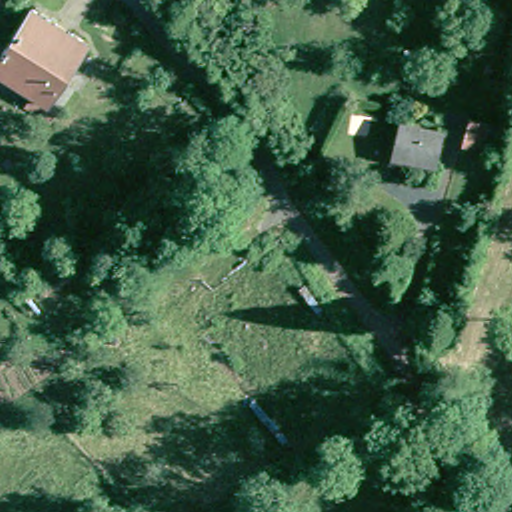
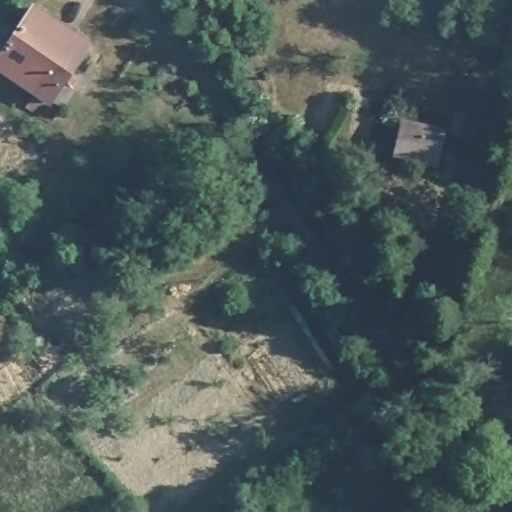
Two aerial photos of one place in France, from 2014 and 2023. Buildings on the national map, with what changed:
unchanged [(0,61),(37,8),(92,46),(52,104),(65,111),(58,121),(57,125),(33,111),(35,106),(41,97),(0,68),(0,61)]
unchanged [(470,118),(502,126),(496,149),(464,141),(470,118)]
unchanged [(432,169),(407,164),(409,156),(400,154),(406,125),(440,131),(432,169)]

